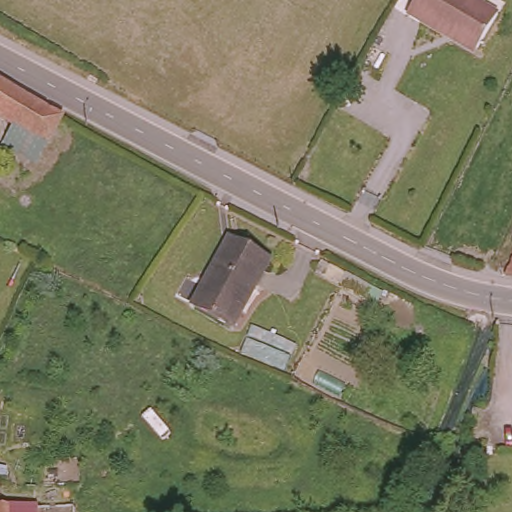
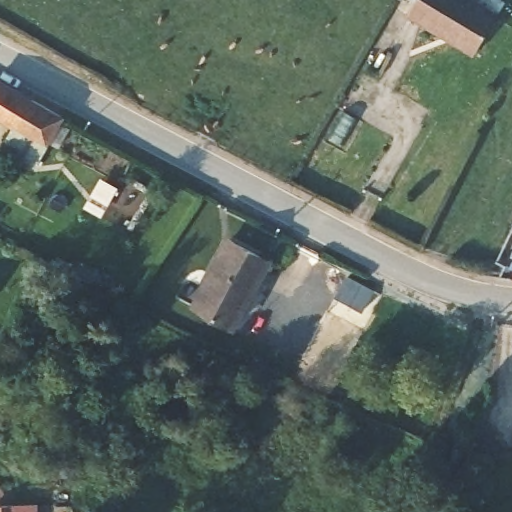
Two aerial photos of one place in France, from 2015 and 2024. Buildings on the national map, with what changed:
unchanged [(498,15),(472,58),(405,17),(415,0),(471,0),(498,15)]
unchanged [(6,151),(17,128),(0,119),(0,85),(50,110),(60,116),(48,144),(38,167),(6,151)]
unchanged [(272,258),(240,327),(198,307),(231,238),(272,258)]
new [(373,290),(362,310),(336,296),(347,275),(373,290)]
unchanged [(512,283),(512,293),(508,292),(512,283)]
unchanged [(0,512),(0,494),(18,493),(35,492),(36,512),(0,512)]

